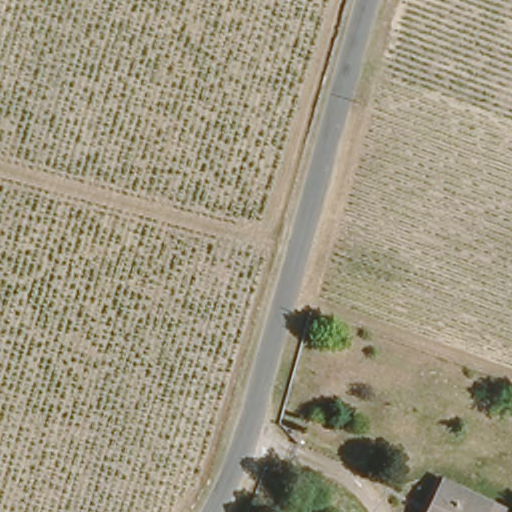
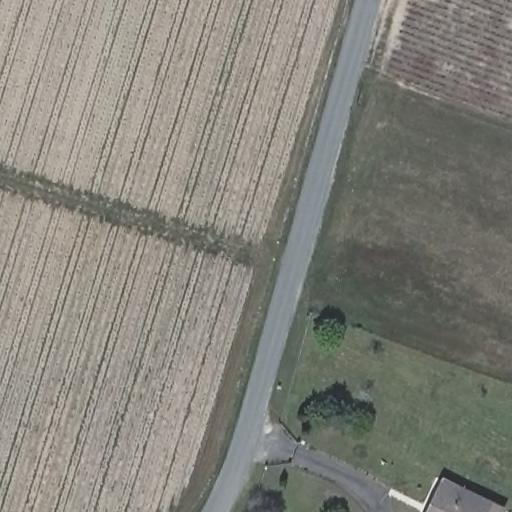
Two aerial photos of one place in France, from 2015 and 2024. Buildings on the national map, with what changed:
unchanged [(440,471),(458,479),(503,500),(498,512),(421,512),(436,478),(440,471)]

